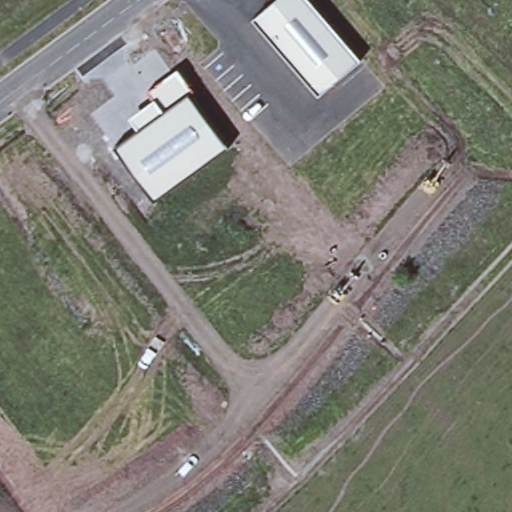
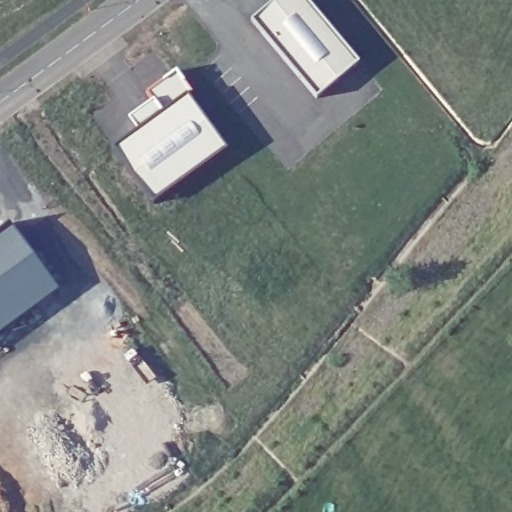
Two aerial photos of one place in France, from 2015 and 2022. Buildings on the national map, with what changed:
unchanged [(322,96),(257,18),(277,0),(307,0),(360,63),(322,96)]
unchanged [(115,148),(138,131),(128,119),(154,100),(147,93),(178,71),(195,90),(188,96),(225,146),(153,201),(115,148)]
new [(13,222),(58,288),(0,330),(0,232),(13,222)]

